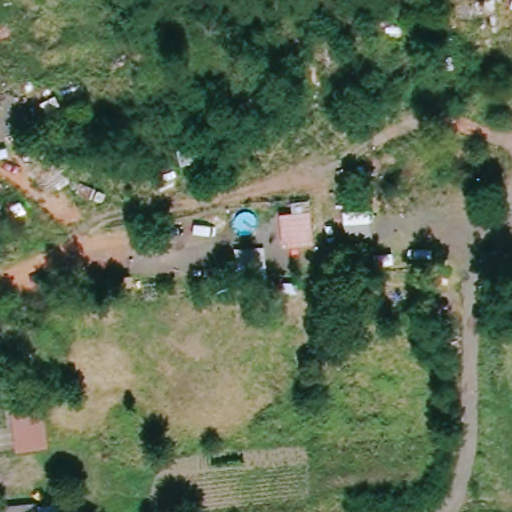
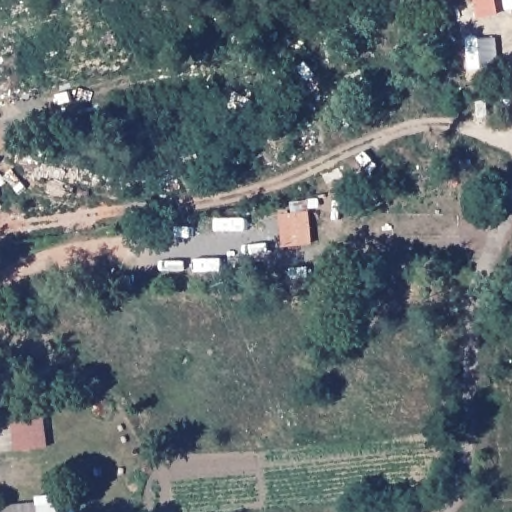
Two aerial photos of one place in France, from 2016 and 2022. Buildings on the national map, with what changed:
unchanged [(35,455),(5,459),(0,422),(0,418),(30,415),(35,455)]
unchanged [(35,512),(0,512),(0,509),(34,506),(35,512)]

